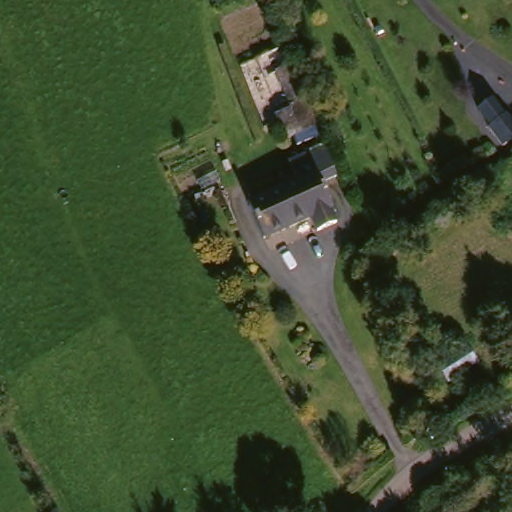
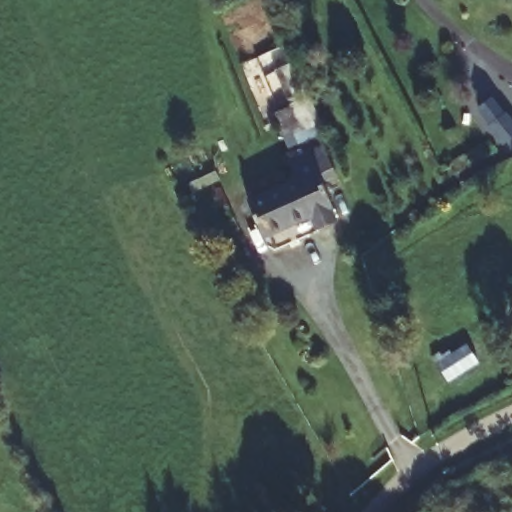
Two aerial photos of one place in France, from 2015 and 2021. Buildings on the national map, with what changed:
unchanged [(299,58),(325,120),(291,134),(281,108),(294,103),(280,68),(299,58)]
unchanged [(511,140),(488,151),(475,127),(480,124),(474,113),(483,108),(489,120),(498,115),(511,140)]
unchanged [(330,209),(337,223),(317,231),(311,217),(264,238),(248,202),(297,180),(288,161),(324,146),(337,176),(322,183),(333,208),(330,209)]
unchanged [(457,383),(443,361),(472,340),(485,361),(457,383)]

